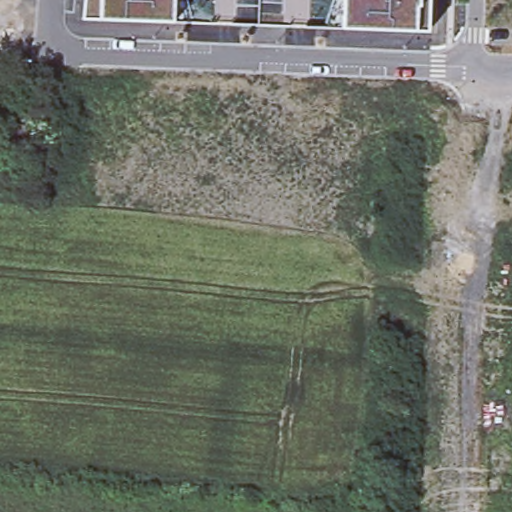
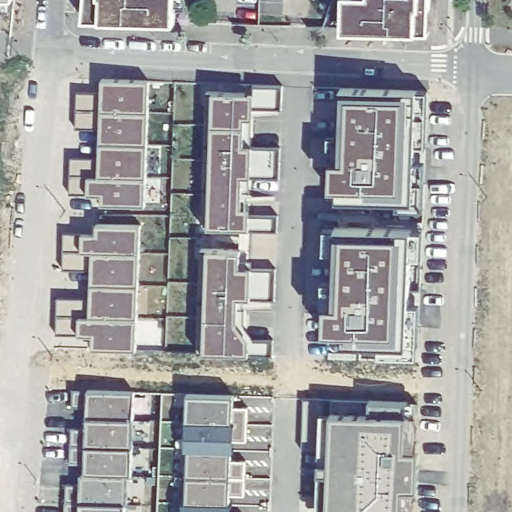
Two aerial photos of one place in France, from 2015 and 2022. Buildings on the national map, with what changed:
new [(14,5),(0,5),(0,0),(14,0),(14,5)]
new [(83,20),(85,0),(101,0),(100,20),(83,20)]
unchanged [(188,9),(176,9),(175,23),(100,20),(101,0),(185,0),(188,9)]
unchanged [(337,0),(431,0),(431,6),(429,6),(428,31),(417,30),(417,31),(403,31),(343,28),(343,15),(331,14),(337,0)]
new [(101,94),(101,80),(109,80),(149,82),(148,114),(75,111),(76,92),(101,94)]
new [(278,216),(277,232),(248,231),(248,230),(241,230),(201,229),(202,214),(203,175),(204,161),(204,141),(205,126),(206,106),(206,92),(246,93),(253,94),(253,85),(283,86),(282,100),(282,110),(275,109),(253,109),(251,147),(281,148),(280,164),(279,179),(250,178),(248,216),(278,216)]
new [(330,359),(333,305),(321,305),(322,279),(333,279),(339,89),(428,92),(417,363),(330,359)]
new [(99,144),(100,131),(75,130),(75,111),(148,114),(146,146),(146,179),(69,176),(70,158),(98,159),(99,144)]
new [(69,176),(146,179),(144,208),(100,206),(100,197),(68,195),(69,176)]
new [(63,233),(95,235),(96,225),(141,227),(139,255),(63,252),(63,233)]
new [(273,357),(243,356),(236,355),(197,354),(197,340),(199,299),(199,285),(200,265),(201,250),(240,252),(247,252),(244,339),(274,340),(273,357)]
new [(90,299),(90,285),(91,272),(62,270),(63,252),(139,255),(138,287),(137,319),(56,316),(57,298),(97,300),(90,299)]
new [(56,316),(137,319),(136,352),(91,350),(92,337),(55,335),(56,316)]
new [(72,389),(134,392),(133,420),(86,418),(86,409),(71,408),(72,389)]
new [(234,395),(233,407),(248,407),(246,441),(232,440),(231,460),(246,461),(244,495),(230,495),(230,512),(183,512),(186,394),(234,395)]
new [(71,428),(85,429),(86,418),(133,420),(133,448),(132,448),(70,446),(71,428)]
new [(399,460),(413,460),(413,496),(399,496),(398,512),(325,512),(329,424),(401,427),(399,460)]
new [(70,446),(132,448),(131,476),(128,476),(84,474),(84,465),(69,464),(70,446)]
new [(66,485),(80,485),(80,474),(84,474),(128,476),(128,505),(125,504),(65,502),(66,485)]
new [(65,502),(125,504),(125,512),(64,512),(64,502),(65,502)]

